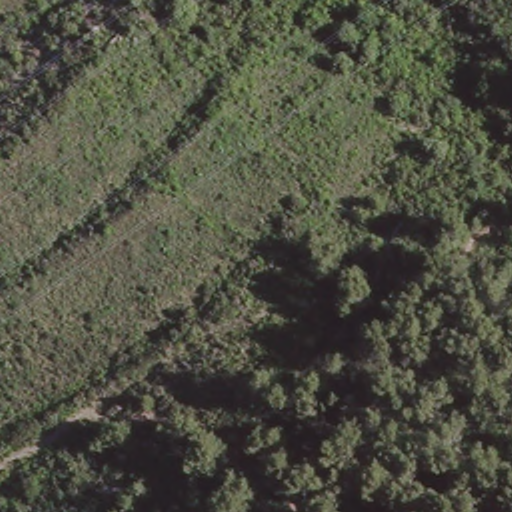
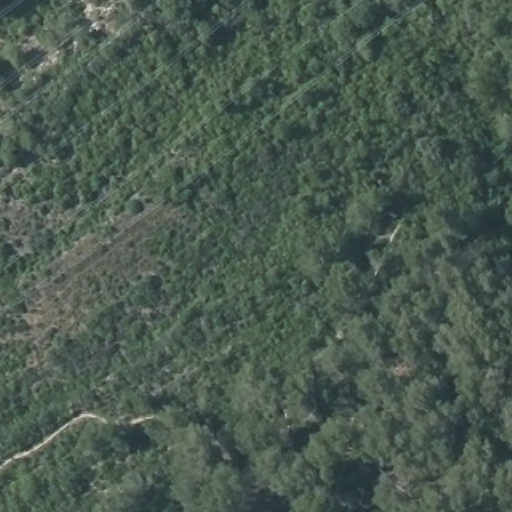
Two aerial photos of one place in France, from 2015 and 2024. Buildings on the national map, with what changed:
[]

